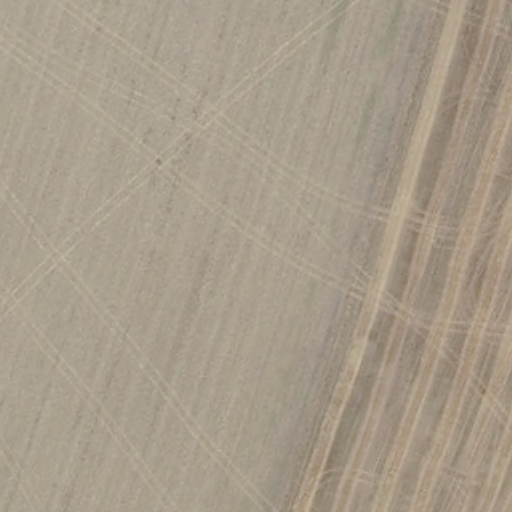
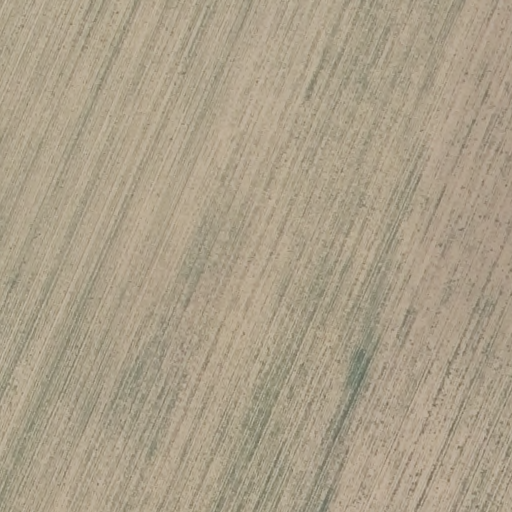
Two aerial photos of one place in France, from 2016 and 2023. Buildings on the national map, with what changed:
[]

